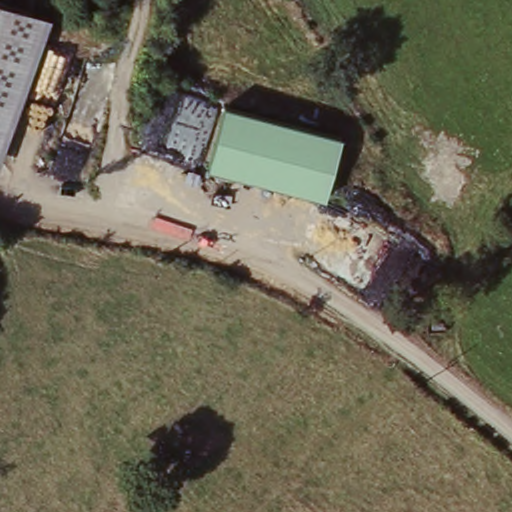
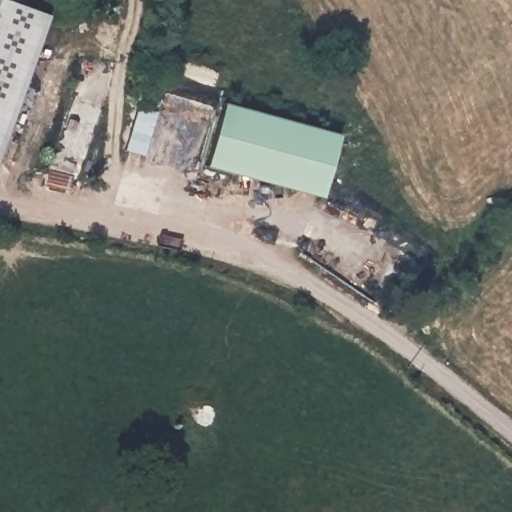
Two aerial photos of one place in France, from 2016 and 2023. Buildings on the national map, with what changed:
unchanged [(0,0),(5,0),(49,15),(0,153),(0,0)]
unchanged [(341,138),(322,200),(205,169),(223,105),(341,138)]

